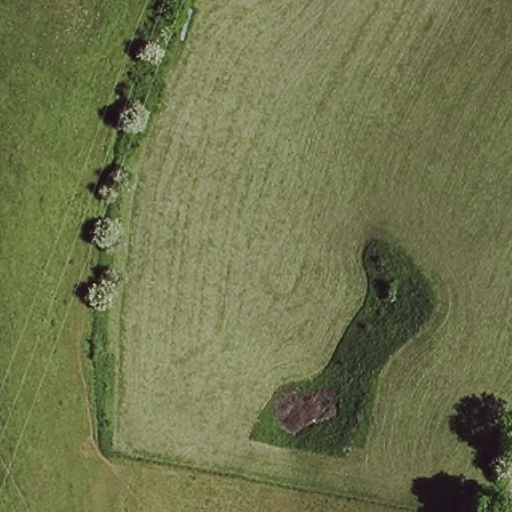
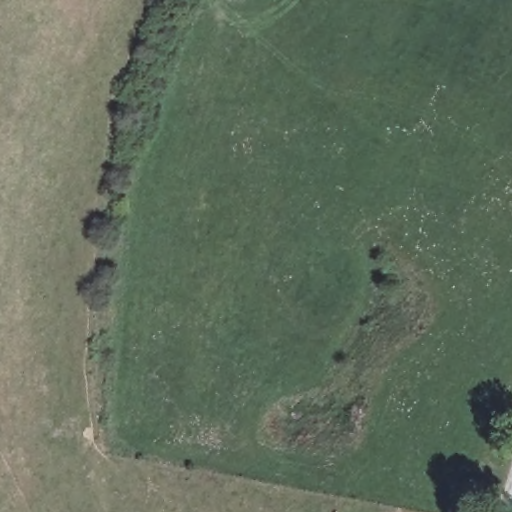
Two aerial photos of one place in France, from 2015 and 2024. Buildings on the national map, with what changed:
[]

